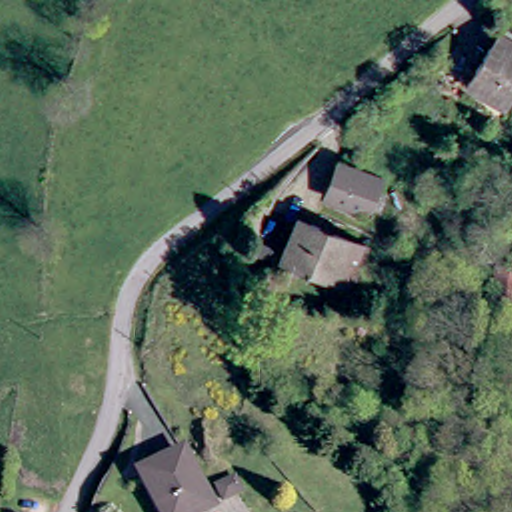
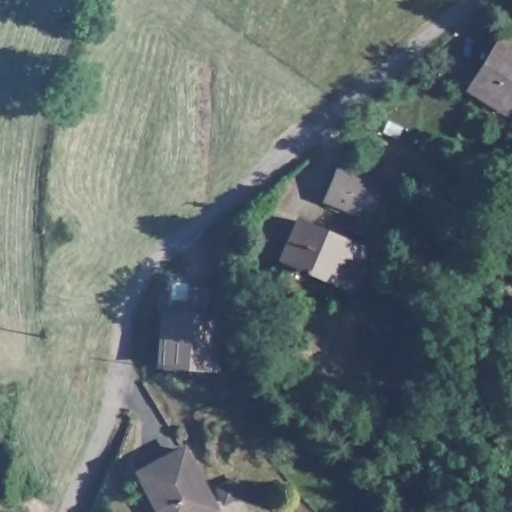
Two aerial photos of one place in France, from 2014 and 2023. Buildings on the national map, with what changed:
unchanged [(512,44),(512,88),(502,105),(465,82),(496,34),(512,44)]
unchanged [(370,176),(357,206),(320,190),(333,160),(370,176)]
unchanged [(345,281),(332,275),(298,261),(293,275),(272,266),(267,264),(293,215),(348,239),(360,244),(345,281)]
unchanged [(250,308),(247,275),(267,264),(272,266),(278,305),(250,308)]
new [(187,312),(190,286),(222,287),(220,372),(157,367),(162,310),(187,312)]
unchanged [(179,447),(210,498),(186,512),(160,512),(135,470),(179,447)]
unchanged [(217,480),(226,475),(237,470),(243,483),(233,488),(223,493),(217,480)]

